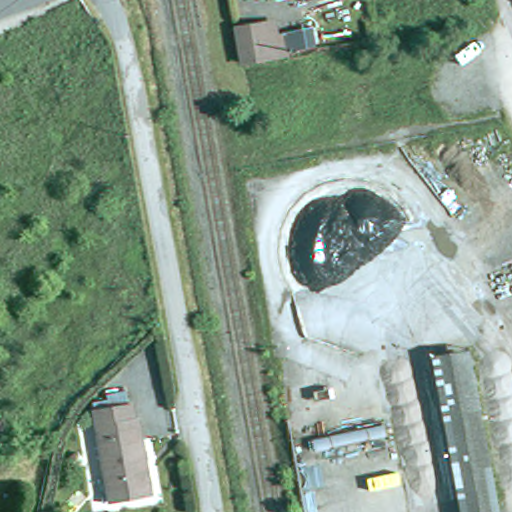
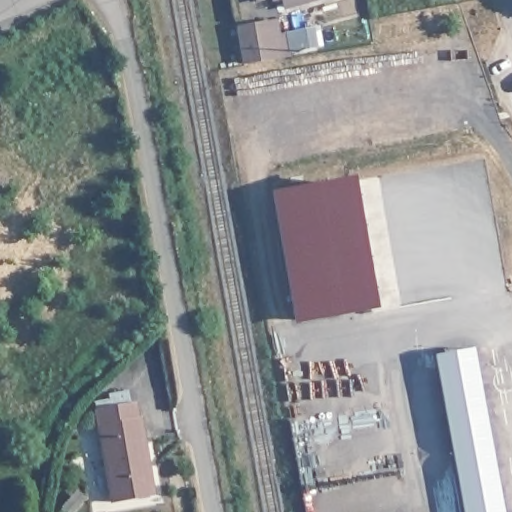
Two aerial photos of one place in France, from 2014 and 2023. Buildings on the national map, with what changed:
unchanged [(276,21),(282,55),(274,57),(245,61),(240,27),(268,22),(276,21)]
new [(350,175),(374,309),(295,322),(269,190),(350,175)]
unchanged [(472,349),(502,512),(465,512),(437,355),(472,349)]
unchanged [(97,410),(135,404),(137,419),(141,419),(153,492),(112,500),(97,410)]

